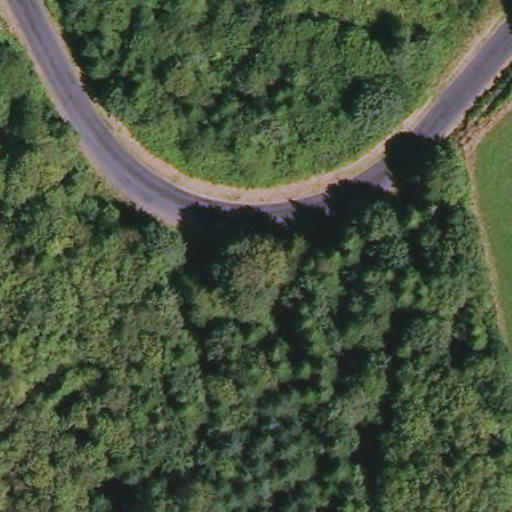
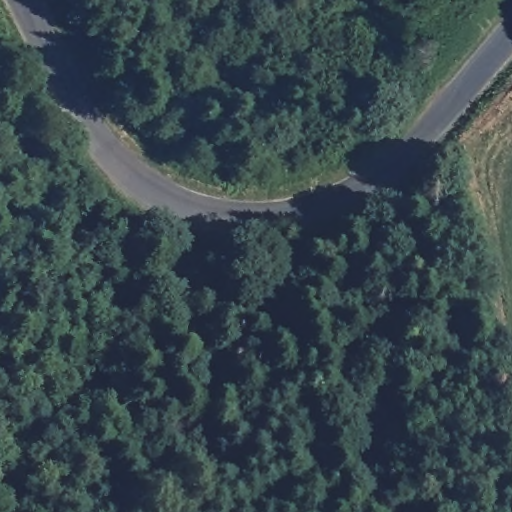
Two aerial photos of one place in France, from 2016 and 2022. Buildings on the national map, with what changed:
[]

